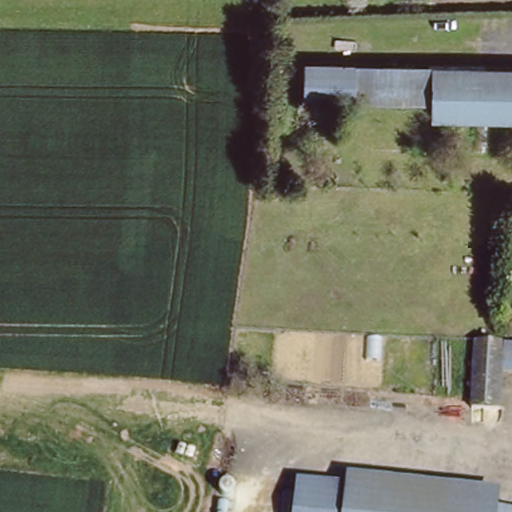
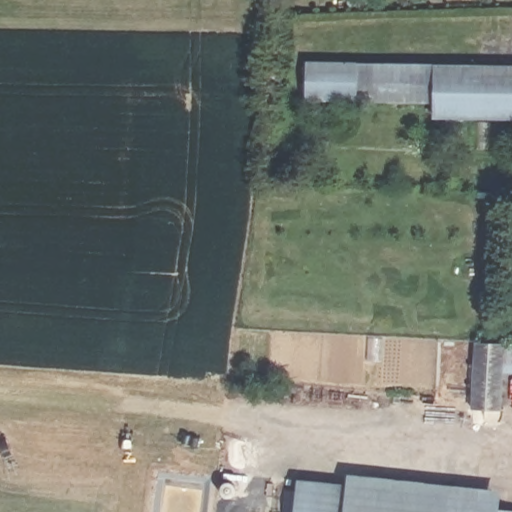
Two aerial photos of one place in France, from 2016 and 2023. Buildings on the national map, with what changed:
unchanged [(310,62),(512,65),(512,124),(432,122),(432,107),(310,105),(310,62)]
unchanged [(466,405),(471,345),(502,346),(505,346),(502,367),(498,409),(466,405)]
unchanged [(502,367),(505,346),(512,347),(512,368),(502,367)]
unchanged [(342,475),(442,483),(439,512),(339,512),(341,489),(342,475)]
unchanged [(492,487),(491,500),(490,512),(439,512),(442,483),(492,487)]
unchanged [(341,489),(339,512),(289,512),(292,486),(341,489)]
unchanged [(506,502),(512,503),(512,512),(490,512),(491,500),(506,502)]

